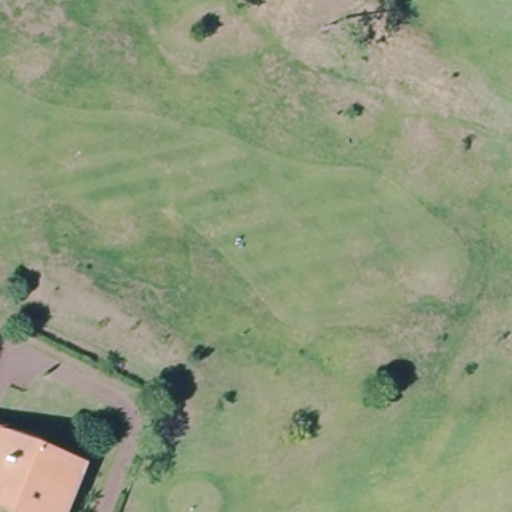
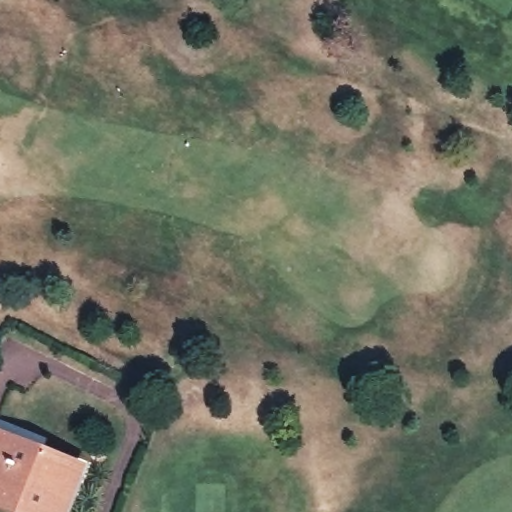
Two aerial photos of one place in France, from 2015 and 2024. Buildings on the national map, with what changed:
unchanged [(87,470),(65,512),(55,512),(0,481),(0,425),(87,470)]
unchanged [(55,512),(21,512),(0,501),(0,481),(55,512)]

